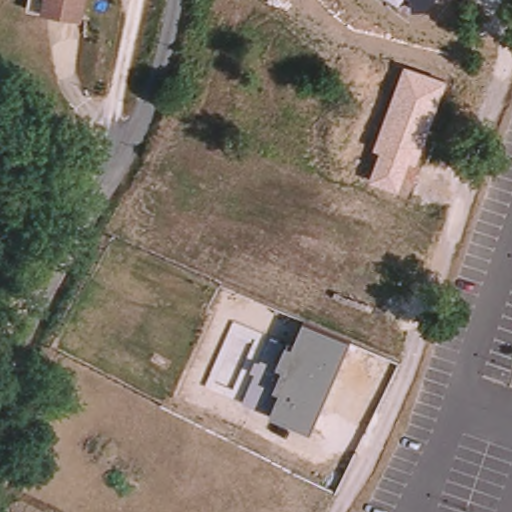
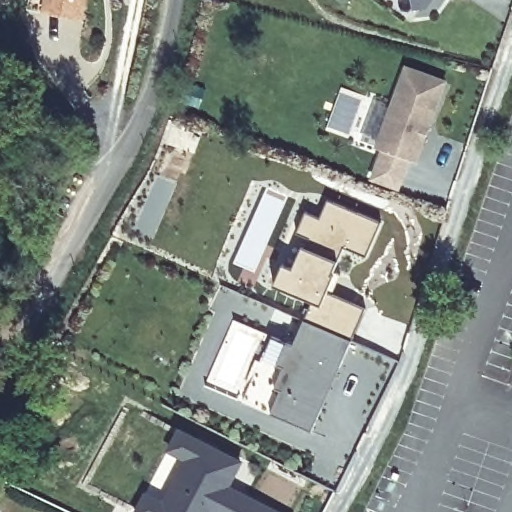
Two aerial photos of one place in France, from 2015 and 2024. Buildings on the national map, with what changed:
unchanged [(28,11),(30,0),(52,0),(84,6),(81,23),(28,11)]
unchanged [(52,0),(86,0),(84,6),(52,0)]
unchanged [(411,7),(411,0),(433,0),(430,4),(411,7)]
unchanged [(449,81),(418,164),(410,161),(398,191),(370,179),(382,151),(375,148),(405,65),(449,81)]
new [(264,188),(287,198),(267,246),(269,247),(251,288),(237,280),(242,268),(231,263),(264,188)]
new [(304,211),(318,217),(325,200),(381,222),(365,258),(343,248),(340,254),(295,233),(304,211)]
unchanged [(296,343),(305,319),(351,340),(310,433),(272,415),(241,402),(271,335),(296,343)]
new [(243,461),(230,486),(281,512),(135,512),(147,489),(164,497),(184,460),(167,451),(177,428),(243,461)]

